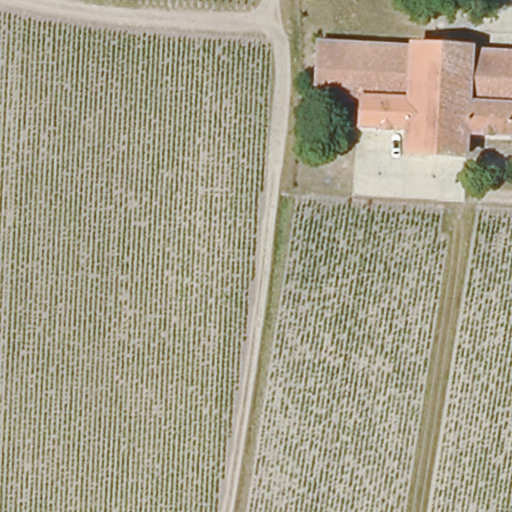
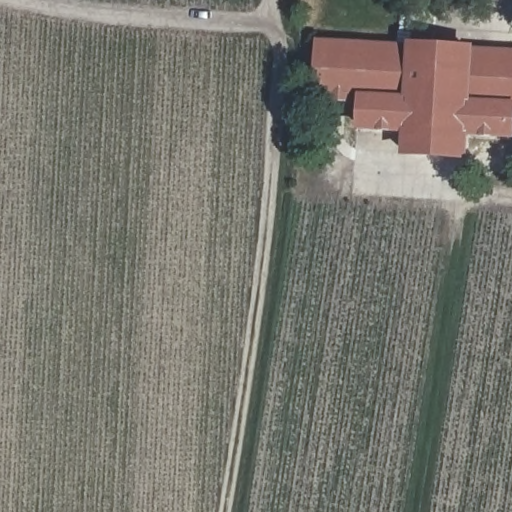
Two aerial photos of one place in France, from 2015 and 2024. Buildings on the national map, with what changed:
unchanged [(471,156),(410,153),(411,130),(365,129),(366,106),(323,104),(325,56),(311,55),(312,43),(512,51),(512,135),(472,134),(471,156)]

